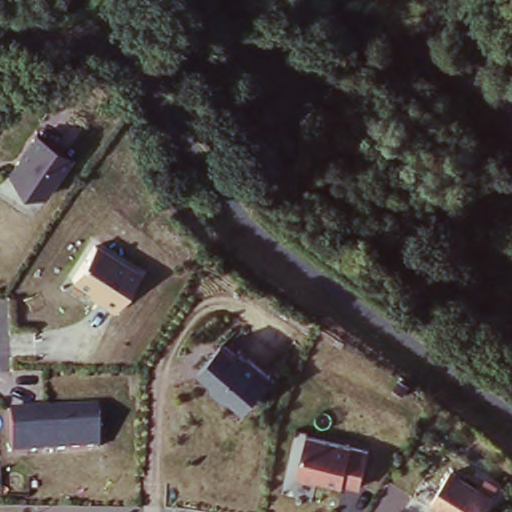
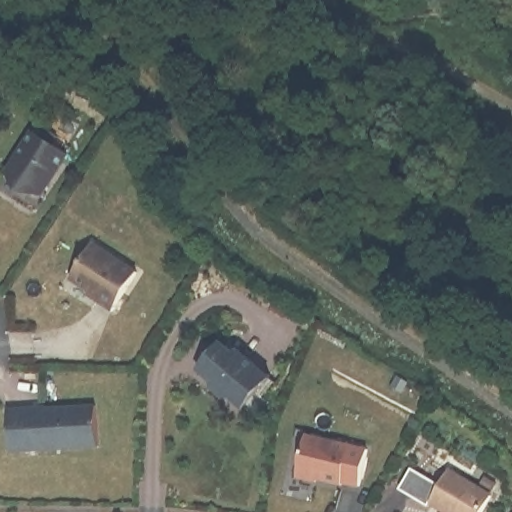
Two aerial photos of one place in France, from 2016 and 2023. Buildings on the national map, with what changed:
unchanged [(72,157),(46,197),(21,200),(6,171),(19,160),(36,132),(72,157)]
unchanged [(140,275),(116,315),(71,284),(97,242),(140,275)]
unchanged [(269,382),(242,415),(199,380),(225,346),(269,382)]
unchanged [(99,403),(101,449),(11,457),(9,409),(99,403)]
unchanged [(369,452),(364,492),(298,482),(307,437),(369,452)]
unchanged [(443,486),(432,509),(399,491),(413,468),(443,486)]
unchanged [(437,512),(432,509),(451,470),(495,495),(484,512),(437,512)]

